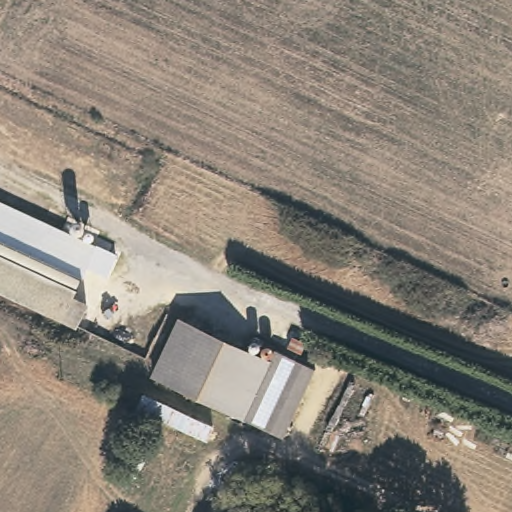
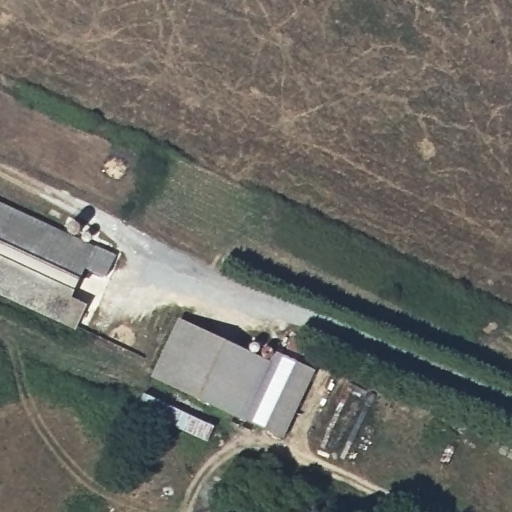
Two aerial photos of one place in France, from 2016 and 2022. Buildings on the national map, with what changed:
unchanged [(95,278),(80,272),(58,321),(44,315),(43,317),(0,296),(0,206),(106,257),(95,278)]
unchanged [(270,360),(242,414),(155,371),(181,317),(270,360)]
unchanged [(277,346),(317,364),(283,433),(242,414),(270,360),(277,346)]
unchanged [(144,388),(212,422),(206,436),(137,402),(144,388)]

